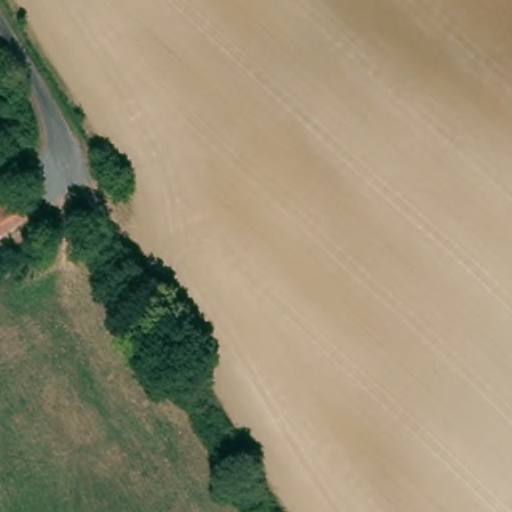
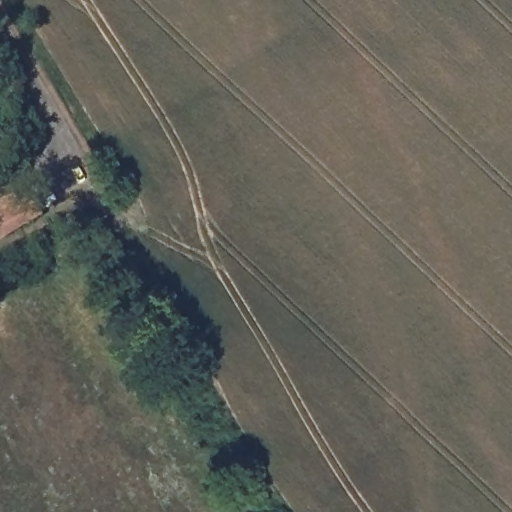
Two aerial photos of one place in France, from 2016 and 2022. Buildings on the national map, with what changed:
unchanged [(9,201),(16,210),(28,202),(39,220),(0,245),(0,207),(9,201)]

